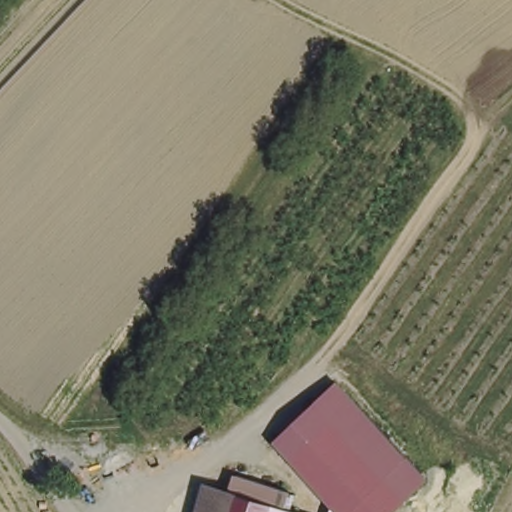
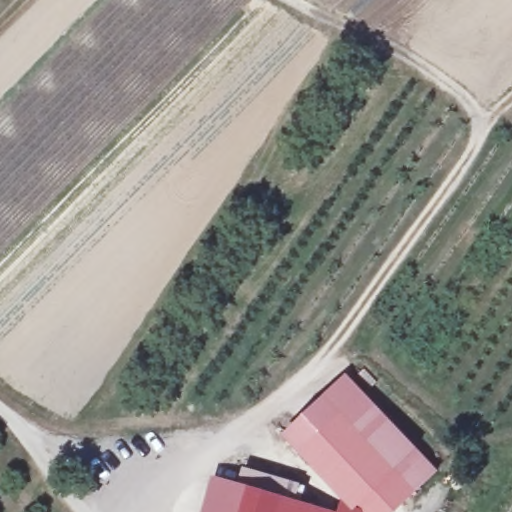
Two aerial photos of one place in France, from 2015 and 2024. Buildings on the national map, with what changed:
unchanged [(322,510),(329,489),(282,435),(339,375),(432,474),(394,512),(297,512),(299,505),(322,510)]
unchanged [(295,504),(299,505),(297,512),(217,512),(226,484),(295,504)]
unchanged [(212,512),(196,512),(197,508),(212,512)]

